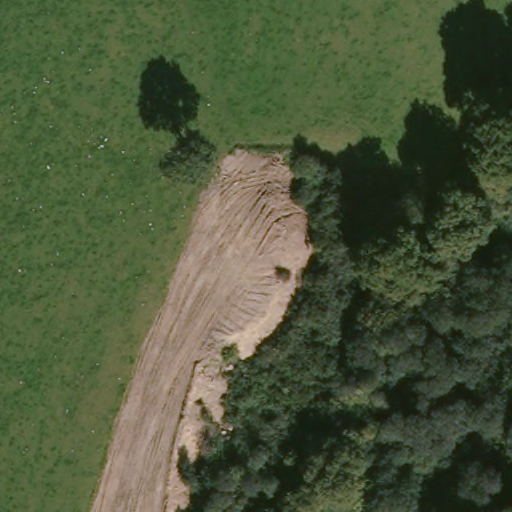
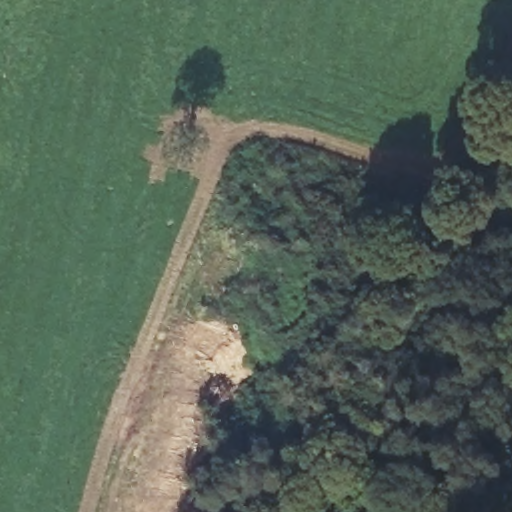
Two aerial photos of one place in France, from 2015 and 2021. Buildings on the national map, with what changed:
[]

